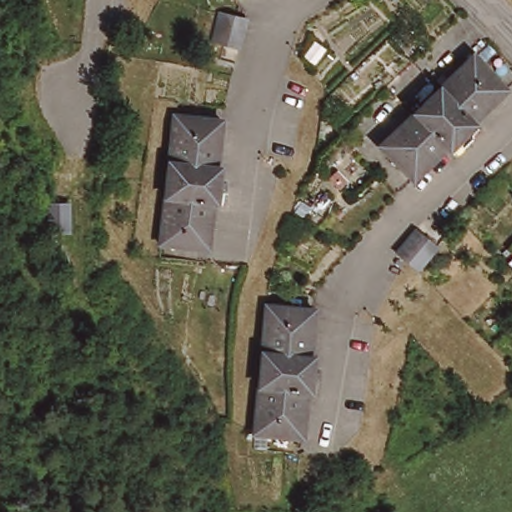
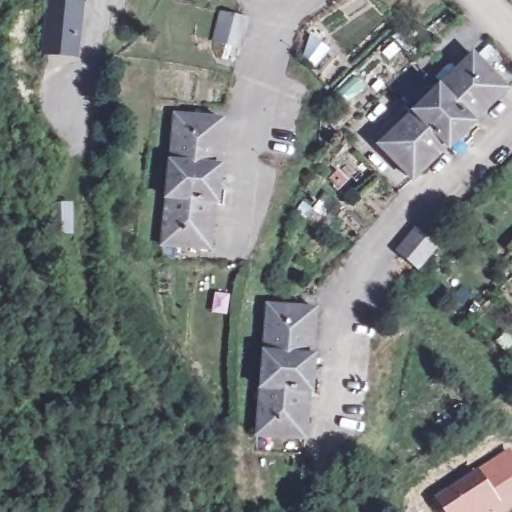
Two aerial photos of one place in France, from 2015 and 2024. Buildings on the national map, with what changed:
new [(79,57),(41,55),(45,0),(65,0),(85,2),(79,57)]
unchanged [(220,14),(237,17),(246,20),(248,20),(241,49),(224,45),(213,42),(220,14)]
unchanged [(472,140),(456,156),(452,153),(447,147),(413,180),(381,146),(474,56),(507,90),(473,122),(474,125),(465,134),(469,138),(472,140)]
unchanged [(210,251),(163,245),(176,117),(223,121),(218,168),(221,168),(220,181),(226,182),(224,191),(218,190),(218,196),(216,196),(214,206),(210,251)]
unchanged [(70,205),(71,233),(54,234),(53,206),(70,205)]
unchanged [(438,246),(418,270),(398,253),(417,230),(438,246)]
unchanged [(312,385),(310,385),(309,397),(306,431),(304,440),(258,435),(268,307),(316,310),(312,355),(311,357),(315,358),(314,371),(321,371),(319,380),(313,380),(312,385)]
new [(512,451),(512,504),(506,510),(501,505),(477,467),(509,447),(512,451)]
new [(501,505),(488,512),(443,512),(433,495),(477,467),(501,505)]

